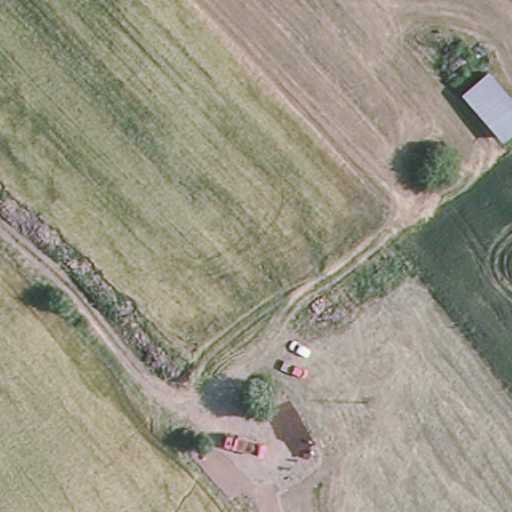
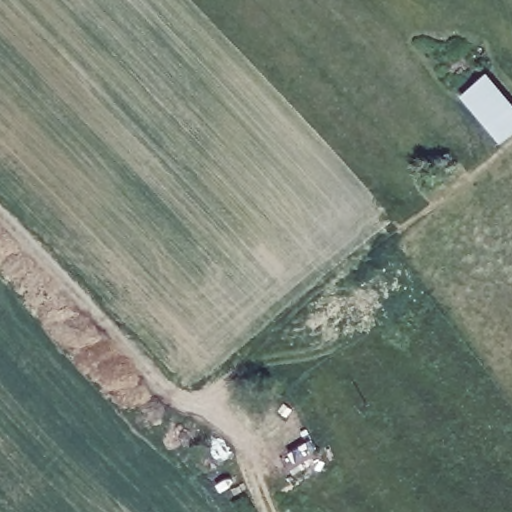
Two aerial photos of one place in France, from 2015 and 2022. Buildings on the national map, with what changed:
unchanged [(512,137),(503,147),(448,89),(485,65),(512,98),(512,137)]

